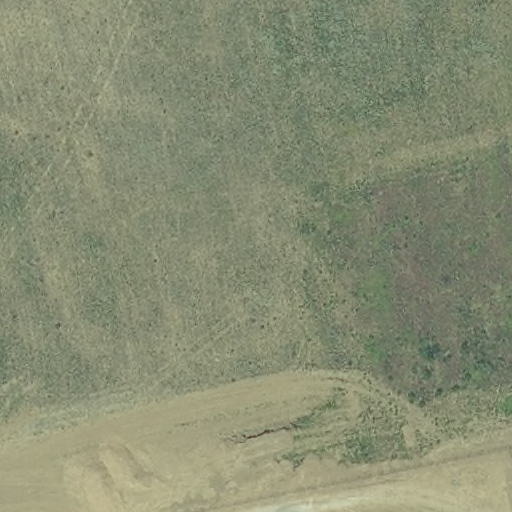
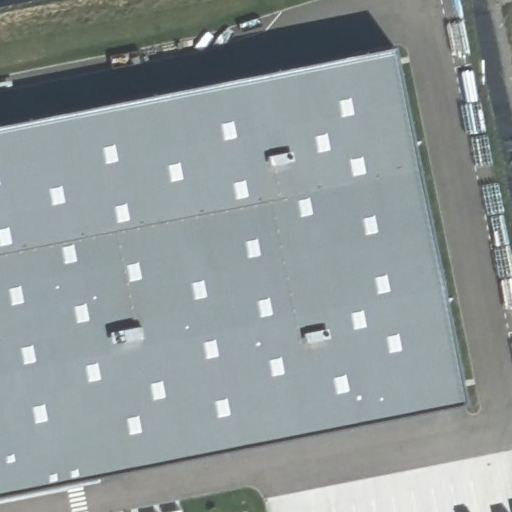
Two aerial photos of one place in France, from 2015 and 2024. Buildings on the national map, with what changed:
new [(24,512),(0,512),(0,142),(404,65),(484,419),(24,512)]

